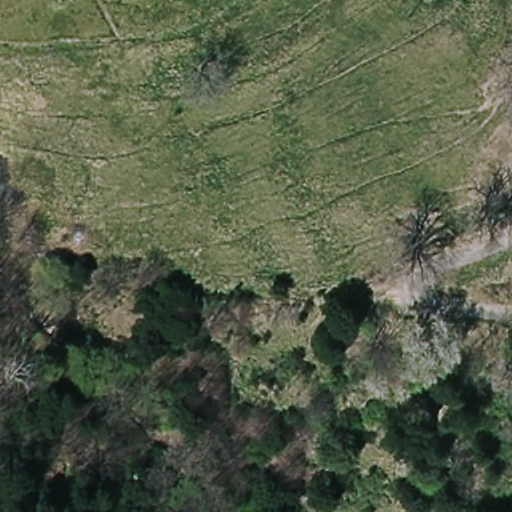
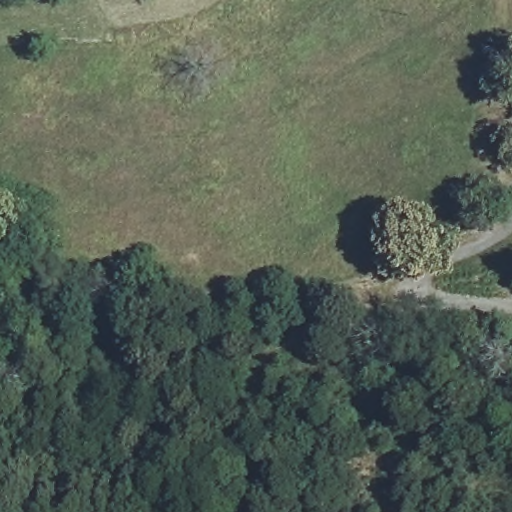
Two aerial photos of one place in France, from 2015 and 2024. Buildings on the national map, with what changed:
[]

